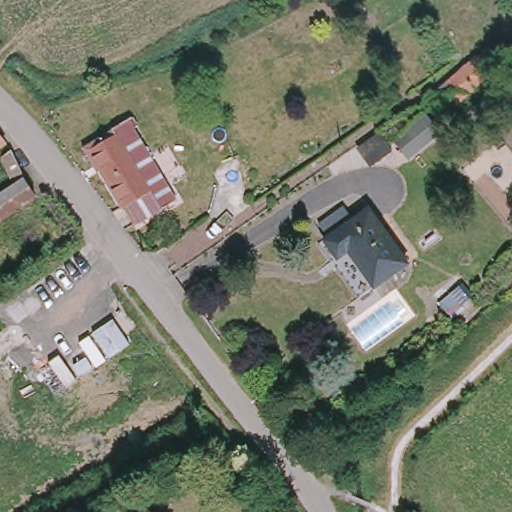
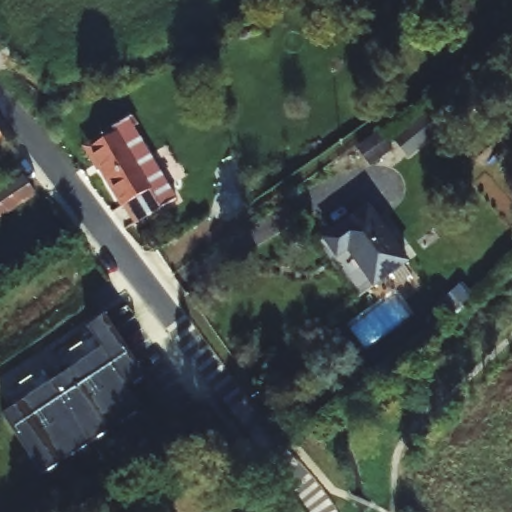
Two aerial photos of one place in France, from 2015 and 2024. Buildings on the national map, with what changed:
unchanged [(424,101),(482,48),(486,46),(500,62),(437,117),(424,101)]
unchanged [(117,136),(113,129),(127,121),(176,201),(162,209),(117,136)]
unchanged [(139,224),(127,203),(124,205),(92,150),(117,136),(162,209),(139,224)]
unchanged [(0,149),(0,141),(5,146),(0,149)]
unchanged [(0,199),(14,190),(1,161),(10,156),(22,185),(34,199),(0,222),(0,199)]
unchanged [(345,251),(337,257),(324,241),(365,209),(407,259),(375,286),(345,251)]
new [(150,370),(135,382),(152,402),(50,471),(10,409),(107,345),(95,322),(113,312),(150,370)]
unchanged [(108,512),(107,505),(134,503),(134,512),(108,512)]

